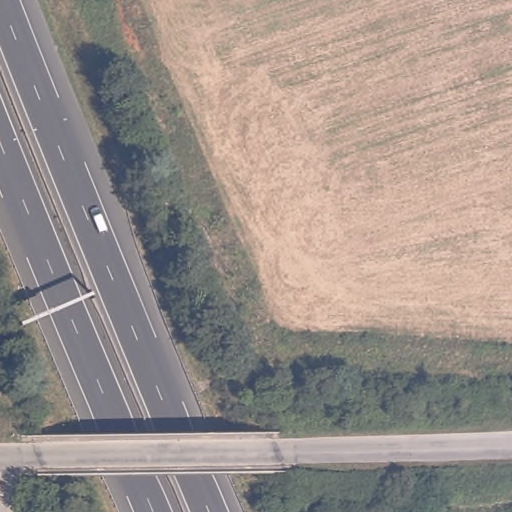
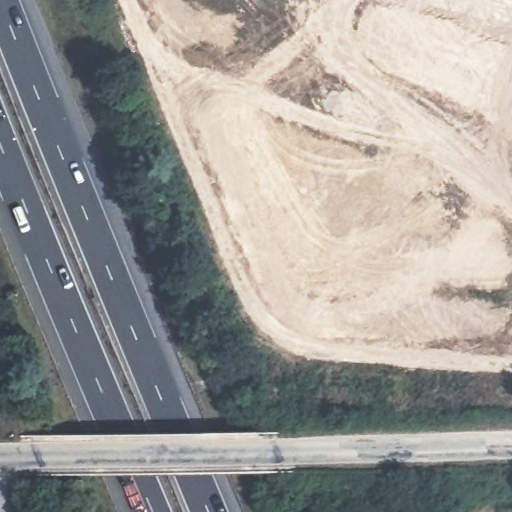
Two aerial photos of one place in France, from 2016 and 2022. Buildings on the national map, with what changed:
[]

